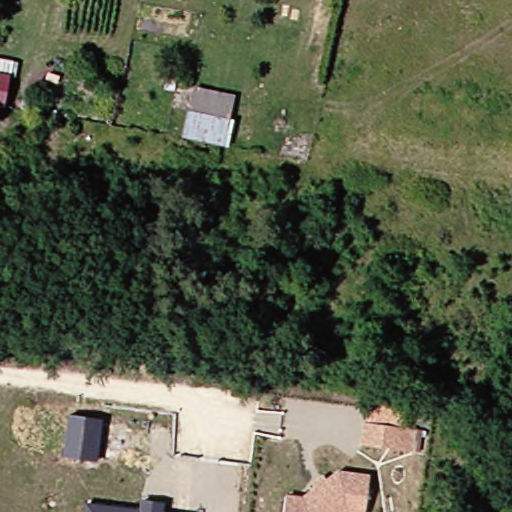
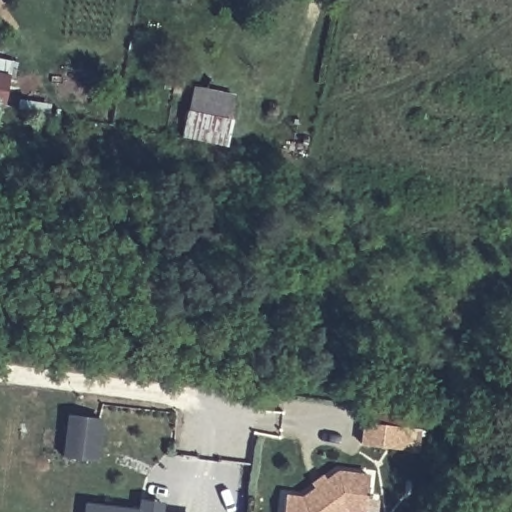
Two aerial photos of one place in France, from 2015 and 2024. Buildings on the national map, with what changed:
unchanged [(16,75),(8,74),(3,110),(0,109),(0,56),(19,59),(16,75)]
unchanged [(240,93),(228,146),(182,136),(195,84),(240,93)]
unchanged [(104,418),(98,461),(63,456),(68,414),(104,418)]
unchanged [(415,426),(413,450),(361,446),(363,422),(415,426)]
unchanged [(372,471),(367,512),(286,512),(288,493),(304,494),(336,468),(372,471)]
unchanged [(138,496),(167,500),(165,511),(173,512),(85,512),(86,501),(137,507),(138,496)]

